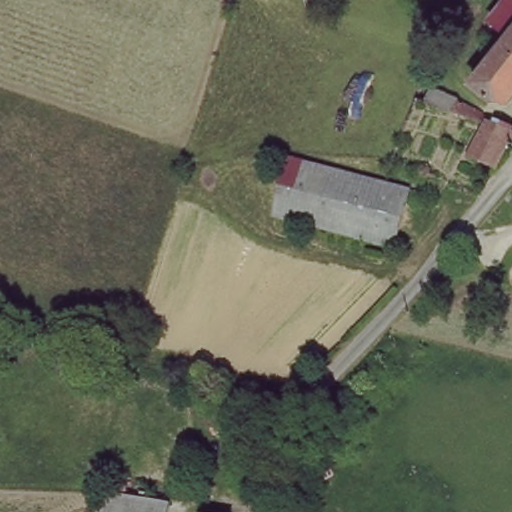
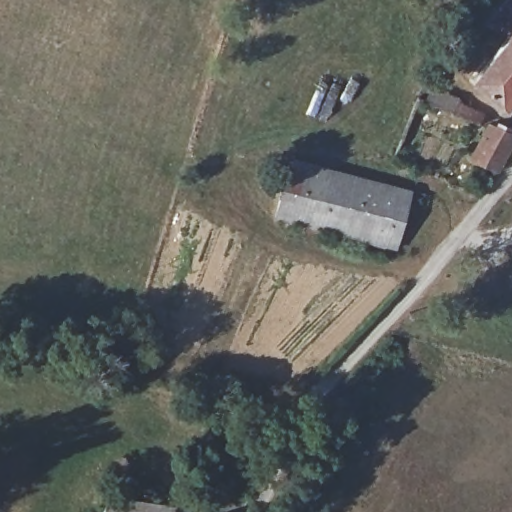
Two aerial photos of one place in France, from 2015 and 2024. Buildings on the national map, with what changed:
unchanged [(507,105),(474,82),(507,34),(490,17),(503,0),(512,0),(512,99),(507,105)]
unchanged [(487,152),(499,122),(512,125),(512,161),(487,152)]
unchanged [(398,246),(279,214),(294,154),(413,186),(398,246)]
unchanged [(169,507),(167,512),(105,512),(109,497),(169,507)]

